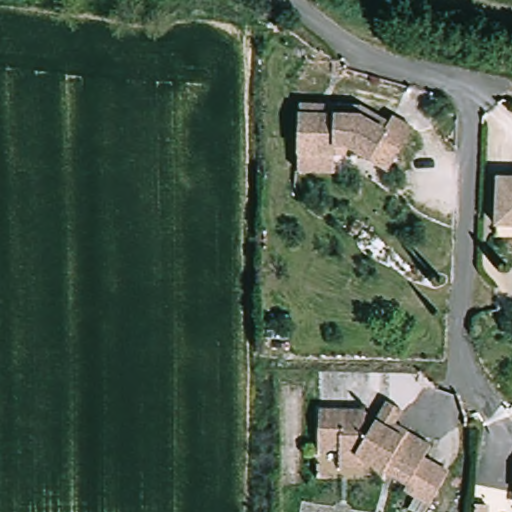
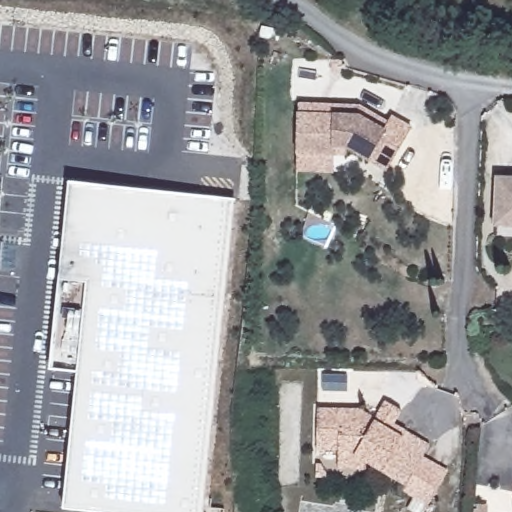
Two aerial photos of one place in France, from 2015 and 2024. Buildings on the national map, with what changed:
unchanged [(363,163),(367,156),(355,150),(332,150),(333,175),(292,175),(293,100),(366,101),(413,125),(385,175),(363,163)]
new [(236,199),(203,512),(91,512),(63,509),(77,372),(50,369),(68,182),(236,199)]
unchanged [(499,230),(499,186),(512,187),(512,230),(499,230)]
new [(20,271),(0,269),(0,246),(23,248),(20,271)]
unchanged [(358,406),(374,413),(383,396),(404,407),(395,425),(430,444),(424,456),(450,468),(428,507),(401,494),(407,485),(363,462),(363,473),(338,472),(337,451),(316,451),(317,405),(358,406)]

